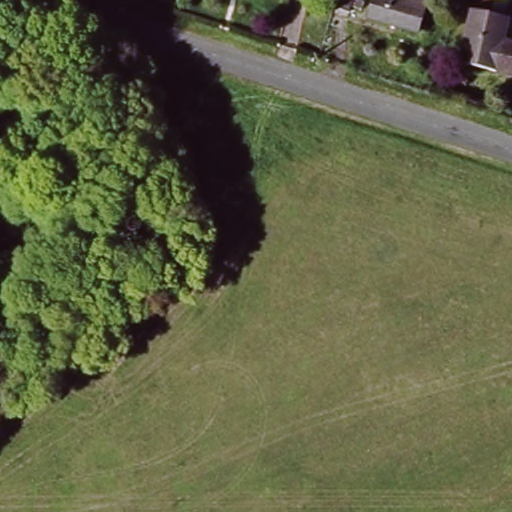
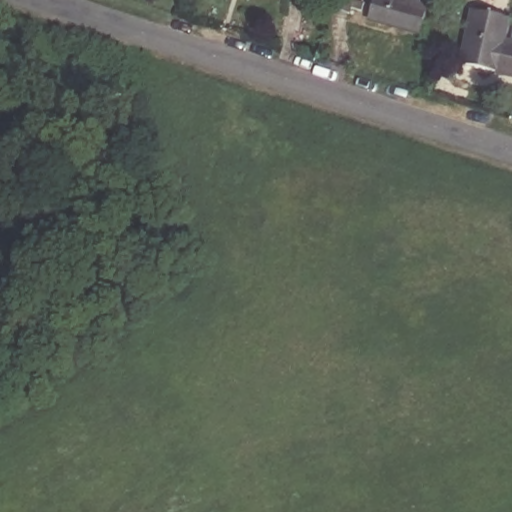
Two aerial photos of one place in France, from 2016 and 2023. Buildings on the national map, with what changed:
unchanged [(360,9),(340,2),(341,0),(363,0),(360,9)]
unchanged [(422,4),(427,5),(420,30),(370,15),(375,0),(423,0),(422,4)]
unchanged [(474,43),(480,14),(512,21),(512,76),(483,70),(469,66),(474,43)]

